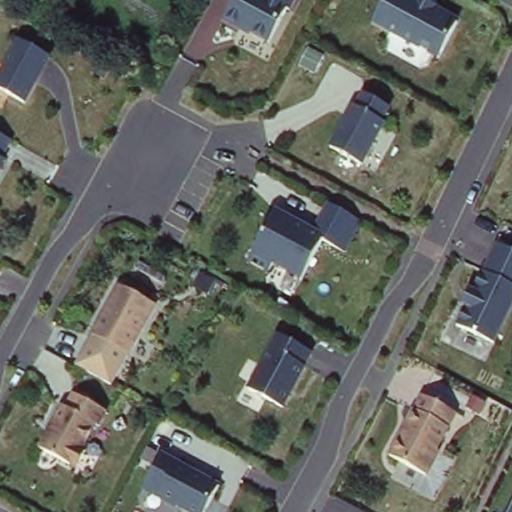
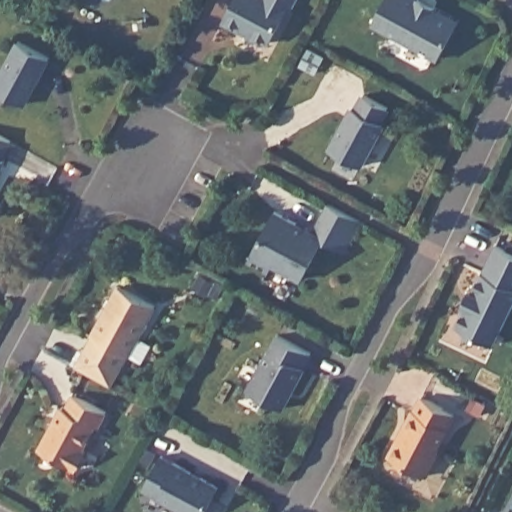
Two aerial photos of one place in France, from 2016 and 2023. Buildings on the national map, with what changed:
unchanged [(223,17),(234,0),(294,0),(265,44),(223,17)]
unchanged [(434,57),(375,22),(387,0),(425,0),(457,16),(434,57)]
unchanged [(19,41),(50,57),(25,106),(0,91),(0,78),(19,41)]
unchanged [(359,92),(389,107),(359,166),(328,150),(359,92)]
unchanged [(8,147),(0,162),(0,141),(8,147)]
unchanged [(314,232),(328,206),(356,220),(340,254),(315,244),(300,277),(251,252),(279,212),(314,232)]
unchanged [(512,303),(493,344),(456,327),(495,247),(512,254),(512,303)]
unchanged [(116,288),(154,309),(130,358),(89,336),(116,288)]
unchanged [(276,335),(309,355),(278,411),(246,387),(276,335)]
unchanged [(69,393),(106,417),(74,472),(37,451),(69,393)]
unchanged [(455,417),(425,477),(387,460),(420,395),(455,417)]
unchanged [(215,482),(201,512),(187,512),(143,490),(163,456),(215,482)]
unchanged [(512,512),(509,512),(512,507),(512,512)]

